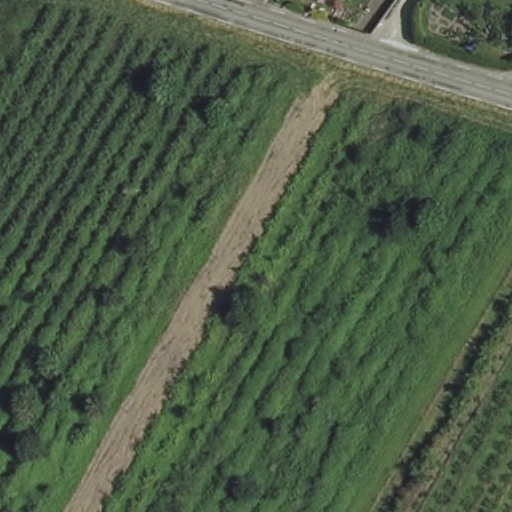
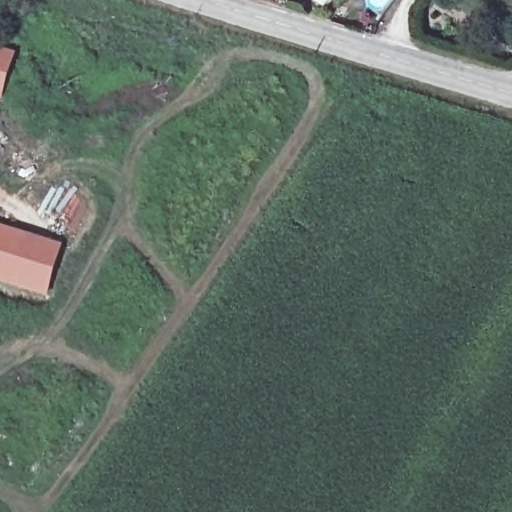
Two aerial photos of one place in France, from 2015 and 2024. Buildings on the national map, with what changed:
new [(16,51),(2,101),(0,101),(0,46),(16,51)]
new [(45,291),(0,277),(0,229),(57,246),(45,291)]

